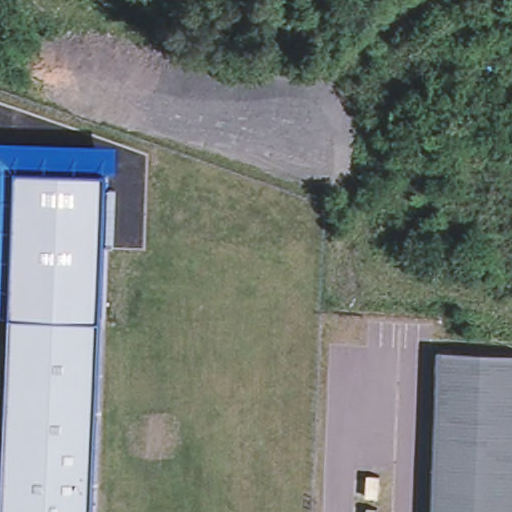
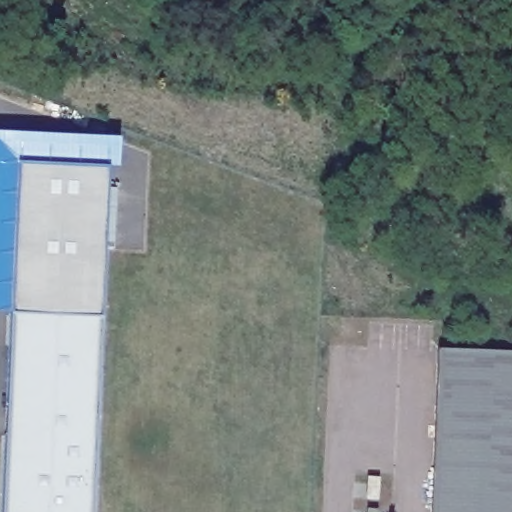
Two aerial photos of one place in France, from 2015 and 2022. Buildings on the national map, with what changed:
unchanged [(94,512),(1,512),(10,308),(0,309),(0,146),(112,152),(103,313),(94,512)]
unchanged [(512,512),(432,512),(436,348),(512,350),(512,512)]
unchanged [(367,476),(379,477),(377,499),(366,498),(367,476)]
unchanged [(377,509),(377,512),(366,512),(366,508),(377,509)]

